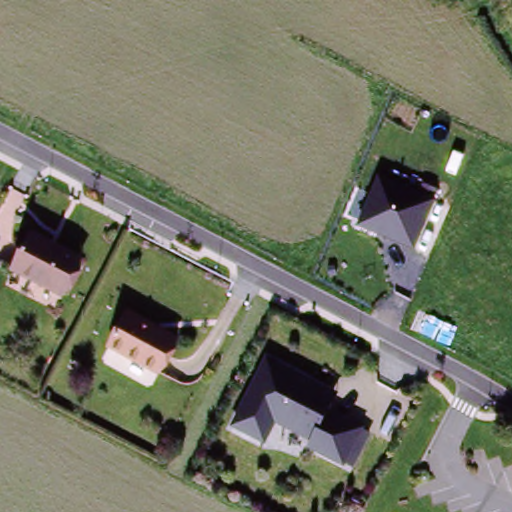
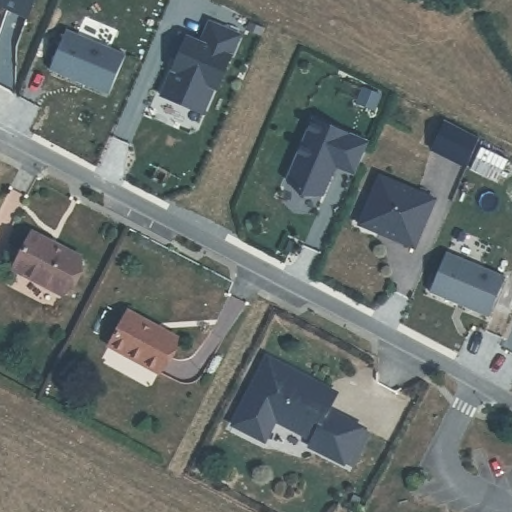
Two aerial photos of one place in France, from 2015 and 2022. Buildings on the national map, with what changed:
new [(0,5),(0,0),(37,0),(30,17),(0,5)]
new [(217,89),(215,88),(204,113),(162,95),(173,68),(177,70),(181,59),(171,55),(180,33),(201,42),(210,21),(241,35),(217,89)]
new [(66,28),(125,53),(108,92),(50,67),(66,28)]
new [(312,116),(366,139),(353,171),(334,163),(322,191),(301,192),(287,177),(312,116)]
new [(443,120),(479,138),(466,167),(430,149),(443,120)]
unchanged [(383,172),(435,198),(414,249),(358,225),(383,172)]
unchanged [(72,263),(54,296),(6,271),(24,238),(72,263)]
new [(447,252),(506,276),(490,315),(431,291),(447,252)]
unchanged [(133,313),(180,336),(163,370),(116,347),(133,313)]
unchanged [(343,394),(334,413),(367,428),(350,464),(313,444),(317,436),(285,418),(270,441),(240,423),(272,359),(343,394)]

